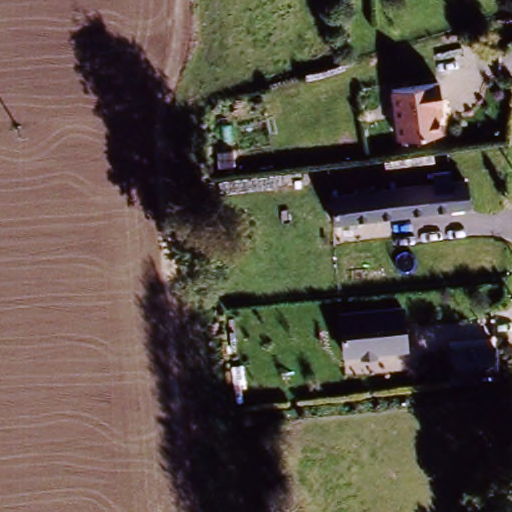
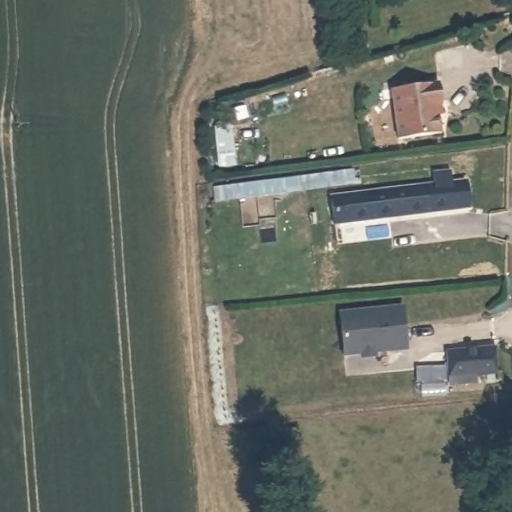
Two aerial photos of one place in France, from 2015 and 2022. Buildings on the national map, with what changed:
unchanged [(394,89),(442,83),(449,132),(401,136),(394,89)]
unchanged [(330,196),(429,185),(427,171),(443,169),(445,183),(463,181),(467,210),(333,226),(330,196)]
unchanged [(342,310),(405,304),(411,348),(350,350),(342,310)]
unchanged [(500,340),(504,370),(454,379),(447,349),(500,340)]

